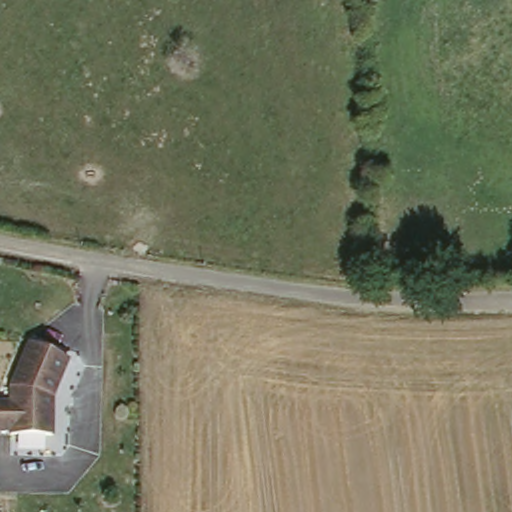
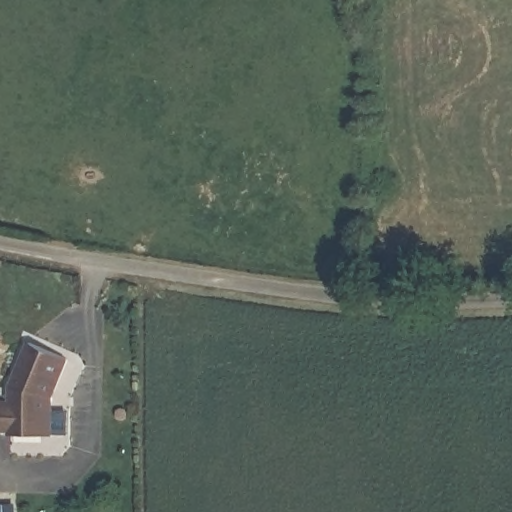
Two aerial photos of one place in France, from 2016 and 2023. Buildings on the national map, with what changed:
unchanged [(73,357),(57,393),(56,431),(0,431),(0,398),(10,398),(11,384),(31,340),(73,357)]

